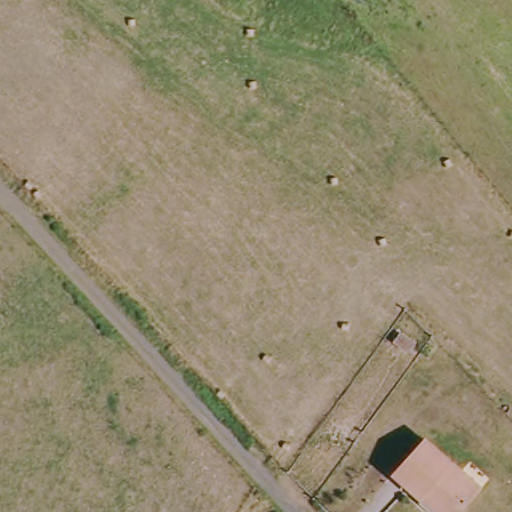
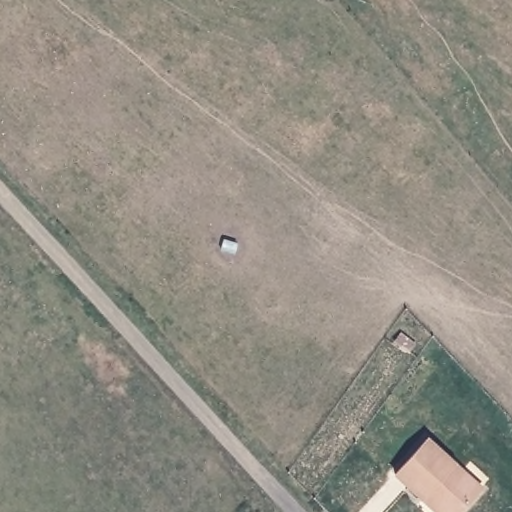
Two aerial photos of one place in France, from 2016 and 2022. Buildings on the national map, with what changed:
unchanged [(488,488),(468,512),(449,512),(432,496),(427,502),(398,477),(433,440),(488,488)]

